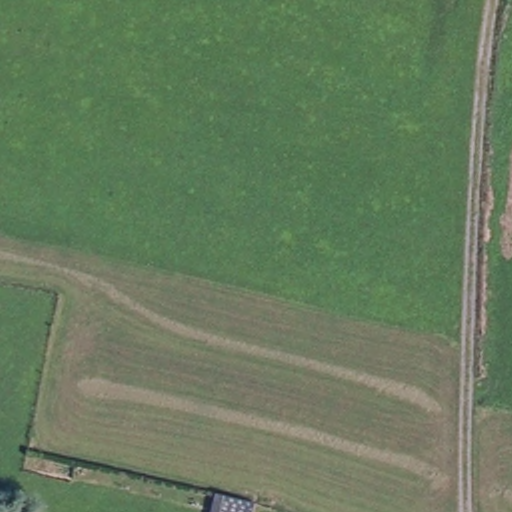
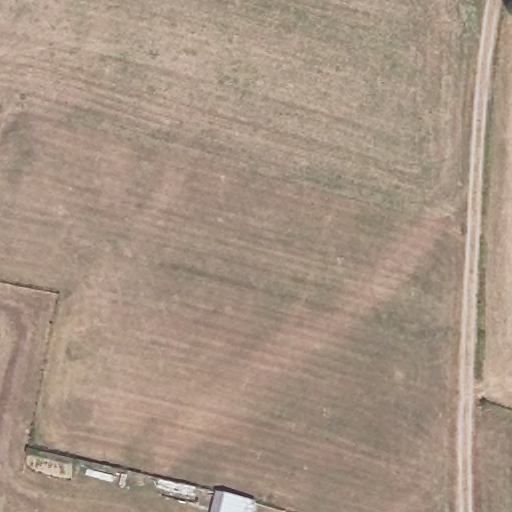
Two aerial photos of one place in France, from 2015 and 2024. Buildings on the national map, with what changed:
unchanged [(219,511),(222,512),(219,512),(219,511)]

